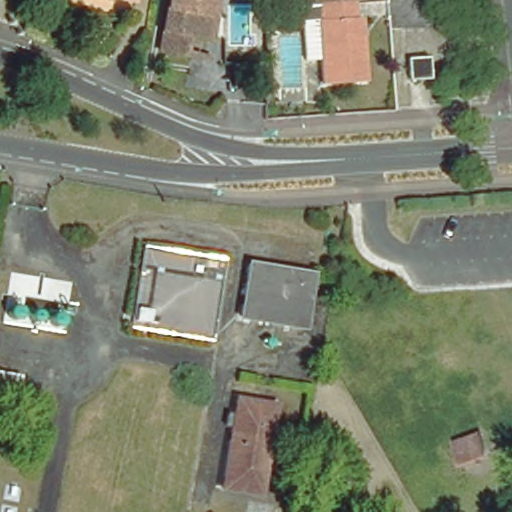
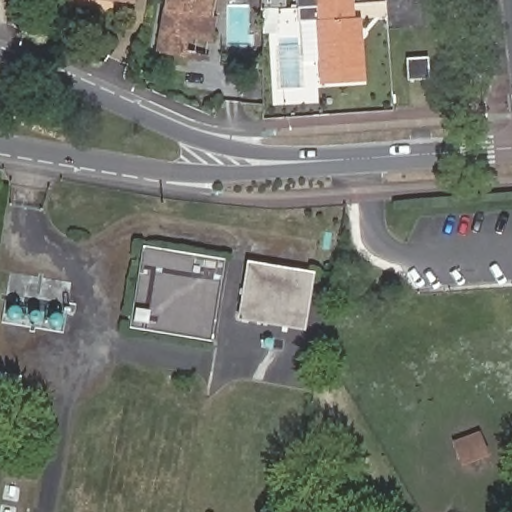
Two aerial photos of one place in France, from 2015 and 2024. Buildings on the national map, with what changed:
unchanged [(202,40),(179,35),(176,54),(150,49),(159,0),(209,0),(205,17),(202,40)]
unchanged [(350,4),(297,7),(297,0),(350,0),(350,4)]
unchanged [(350,4),(351,19),(358,18),(362,82),(319,84),(318,60),(303,60),(301,22),(298,23),(297,7),(350,4)]
unchanged [(426,58),(427,80),(407,81),(406,59),(426,58)]
unchanged [(210,341),(129,326),(143,247),(223,260),(210,341)]
unchanged [(302,328),(240,317),(249,264),(310,273),(302,328)]
unchanged [(0,389),(0,374),(20,377),(17,392),(0,389)]
demolished [(254,496),(215,489),(231,398),(270,406),(254,496)]
unchanged [(493,453),(463,464),(455,440),(484,428),(493,453)]

